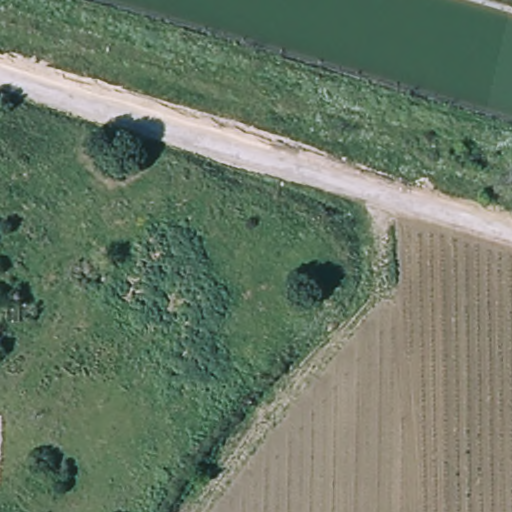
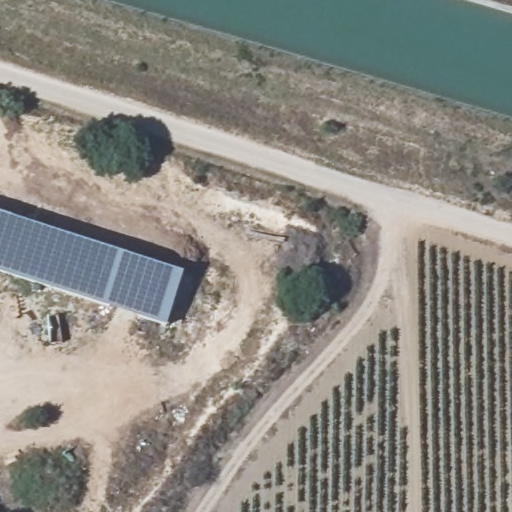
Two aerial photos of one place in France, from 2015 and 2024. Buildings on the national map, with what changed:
new [(167,327),(0,273),(0,213),(183,272),(167,327)]

